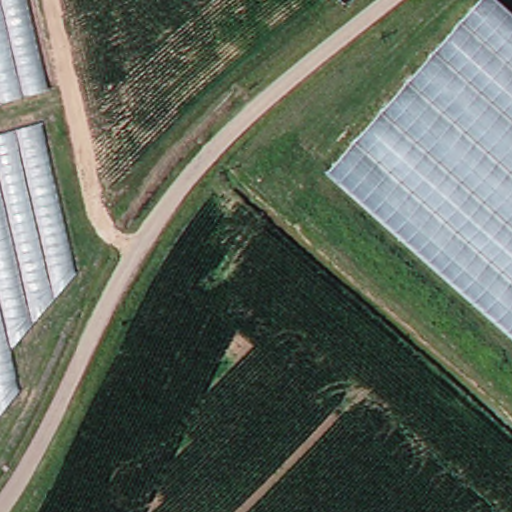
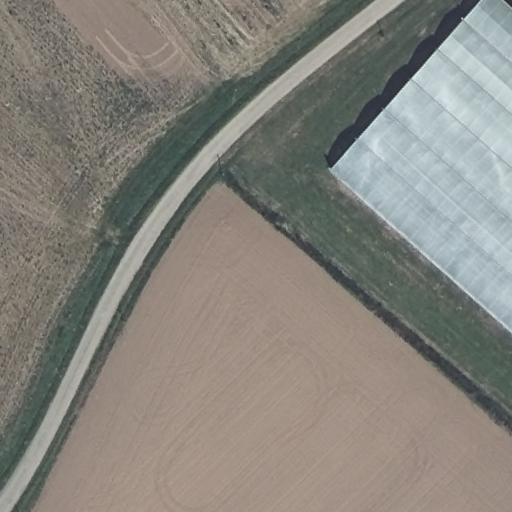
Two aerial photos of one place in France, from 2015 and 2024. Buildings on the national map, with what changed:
demolished [(0,0),(29,0),(50,88),(0,102),(0,0)]
unchanged [(330,166),(478,0),(508,0),(512,3),(512,328),(330,166)]
demolished [(12,348),(23,393),(0,418),(0,130),(43,119),(79,272),(12,348)]

